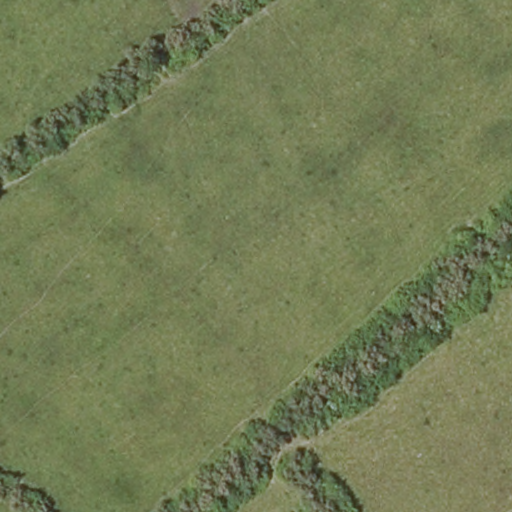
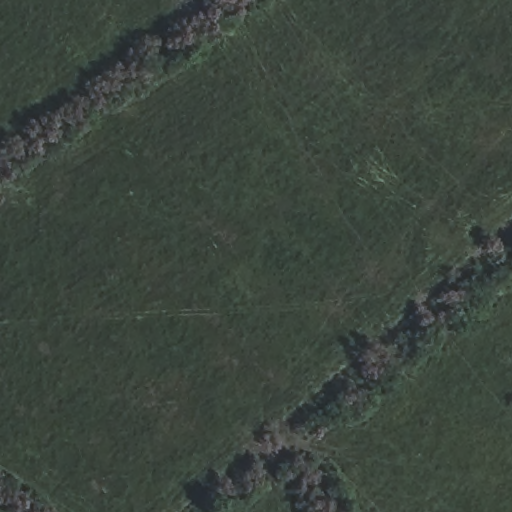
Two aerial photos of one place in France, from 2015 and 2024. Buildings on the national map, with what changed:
[]

